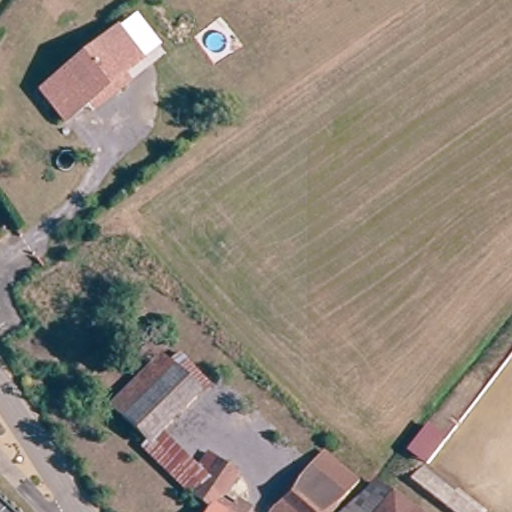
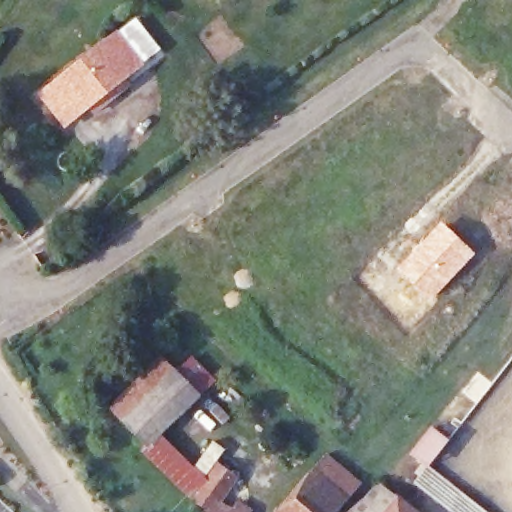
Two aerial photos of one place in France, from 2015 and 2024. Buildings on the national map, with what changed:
unchanged [(80,109),(60,125),(35,92),(115,33),(128,51),(138,66),(121,79),(127,87),(110,100),(89,117),(80,109)]
new [(440,221),(475,254),(430,301),(396,267),(440,221)]
unchanged [(160,412),(124,381),(141,360),(176,391),(160,412)]
unchanged [(160,412),(150,425),(135,442),(99,412),(124,381),(160,412)]
unchanged [(209,455),(235,480),(215,512),(214,512),(135,442),(150,425),(196,466),(209,455)]
unchanged [(340,512),(279,512),(328,457),(363,486),(340,512)]
unchanged [(484,512),(452,512),(414,480),(427,465),(484,512)]
unchanged [(2,470),(0,473),(0,468),(2,470)]
unchanged [(379,480),(419,512),(352,512),(379,480)]
unchanged [(236,510),(239,512),(235,512),(236,510)]

